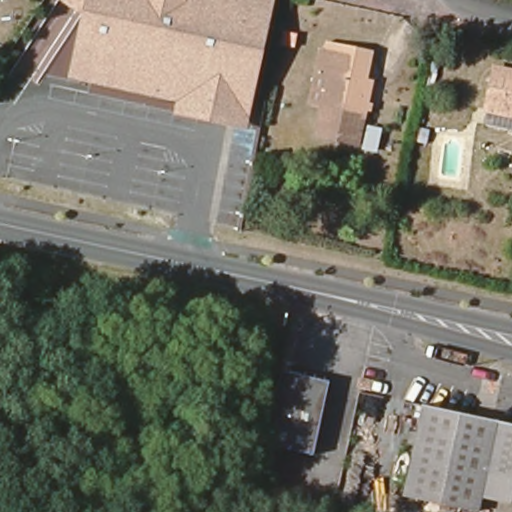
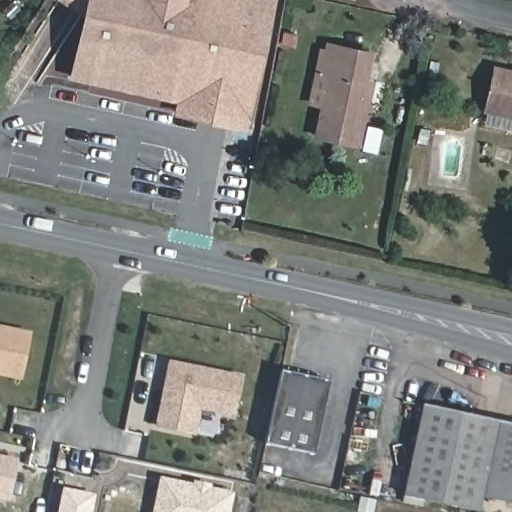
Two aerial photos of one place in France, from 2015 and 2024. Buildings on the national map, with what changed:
unchanged [(81,15),(59,0),(277,0),(246,130),(174,116),(177,101),(68,79),(81,15)]
unchanged [(317,136),(328,85),(316,76),(324,45),(337,48),(364,53),(361,78),(378,82),(363,145),(317,136)]
unchanged [(512,78),(512,122),(487,115),(497,74),(512,78)]
new [(31,336),(23,379),(0,374),(0,330),(31,336)]
new [(175,366),(243,380),(236,415),(203,408),(197,435),(162,427),(175,366)]
unchanged [(278,373),(317,382),(305,450),(265,446),(278,373)]
unchanged [(512,505),(488,500),(485,512),(479,512),(404,498),(425,407),(512,423),(512,505)]
new [(18,458),(9,501),(0,500),(0,455),(18,458)]
new [(197,486),(210,488),(210,491),(233,496),(230,512),(158,512),(164,482),(197,488),(197,486)]
new [(94,494),(91,512),(57,512),(61,489),(94,494)]

